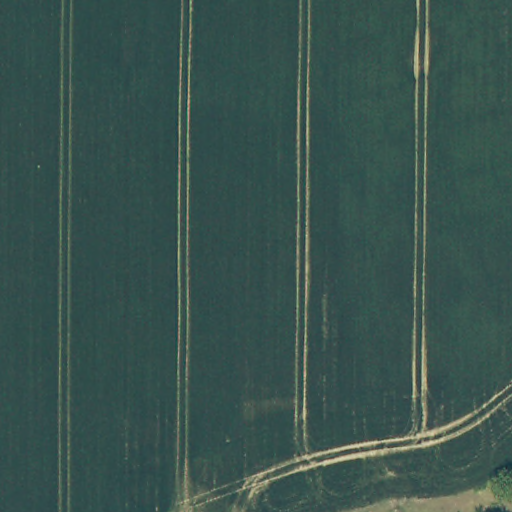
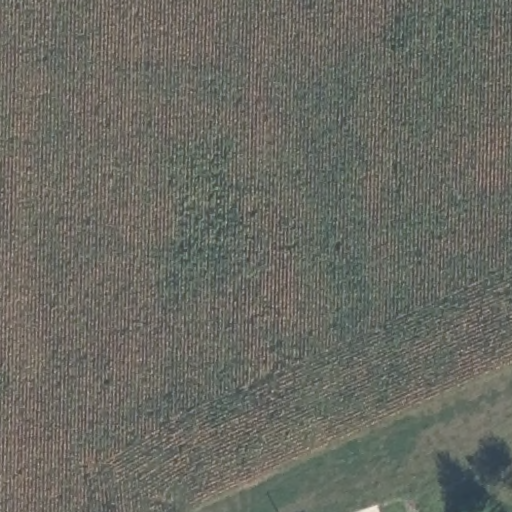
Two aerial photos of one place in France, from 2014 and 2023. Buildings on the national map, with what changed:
unchanged [(511,500),(510,498),(512,497),(512,501),(511,500)]

